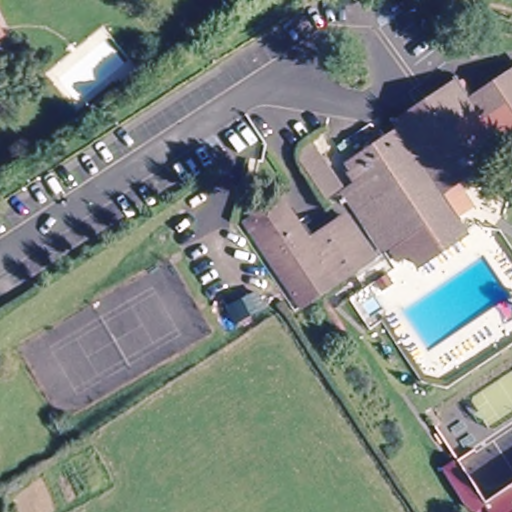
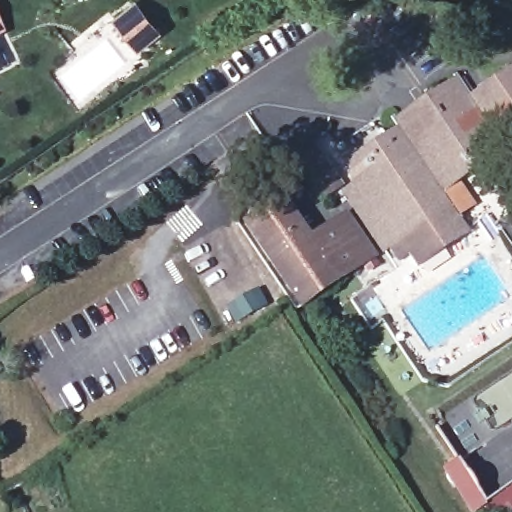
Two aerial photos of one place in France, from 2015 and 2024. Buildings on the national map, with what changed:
new [(163,34),(137,54),(112,20),(136,0),(163,34)]
unchanged [(0,19),(8,35),(0,36),(0,19)]
unchanged [(510,147),(477,169),(447,189),(465,214),(402,255),(386,230),(379,219),(370,225),(354,199),(362,193),(357,184),(364,178),(353,160),(366,152),(435,105),(430,97),(447,86),(452,93),(467,83),(475,96),(512,71),(512,150),(510,147)]
unchanged [(345,186),(329,196),(306,161),(310,146),(317,142),(345,186)]
unchanged [(306,305),(250,221),(286,197),(313,239),(343,219),(351,214),(366,237),(378,257),(306,305)]
unchanged [(483,500),(512,481),(512,512),(492,512),(483,500)]

